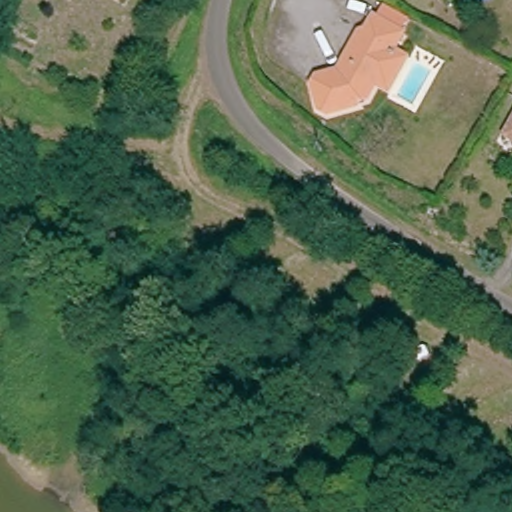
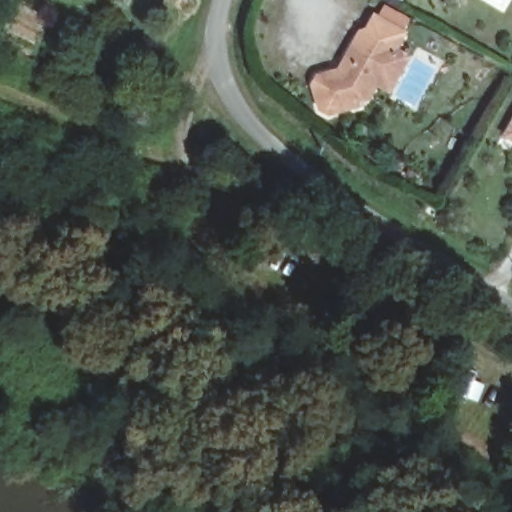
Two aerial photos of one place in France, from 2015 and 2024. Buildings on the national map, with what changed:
unchanged [(391,90),(378,82),(370,99),(360,101),(360,104),(330,114),(327,112),(322,111),(318,82),(320,79),(322,77),(340,72),(343,70),(365,31),(368,32),(378,17),(406,32),(396,49),(410,58),(391,90)]
unchanged [(512,113),(512,141),(500,135),(512,113)]

